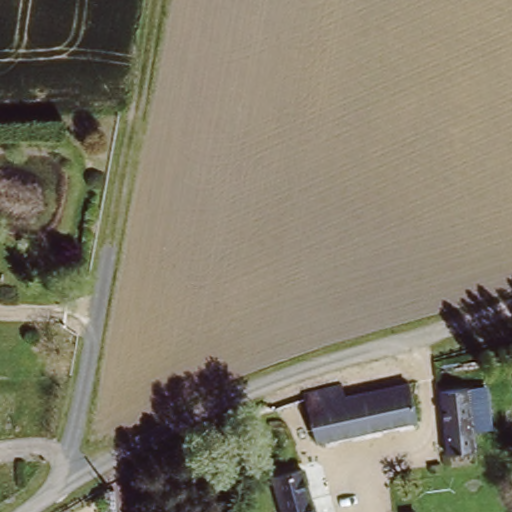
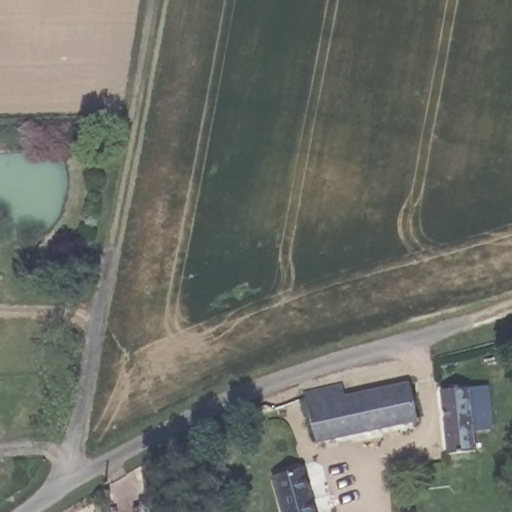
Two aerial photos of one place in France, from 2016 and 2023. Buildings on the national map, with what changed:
unchanged [(467,379),(475,441),(452,443),(445,382),(467,379)]
unchanged [(340,386),(344,401),(410,385),(417,420),(315,445),(302,395),(340,386)]
unchanged [(300,469),(312,512),(283,512),(271,478),(300,469)]
unchanged [(217,474),(233,482),(227,494),(210,486),(217,474)]

